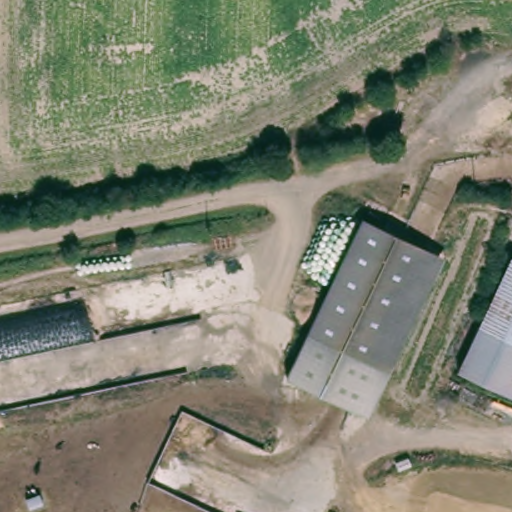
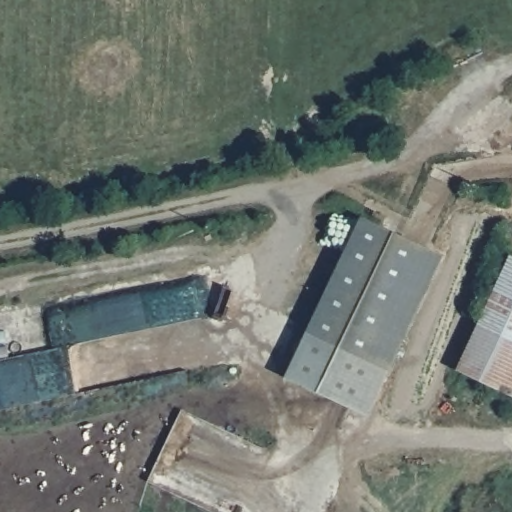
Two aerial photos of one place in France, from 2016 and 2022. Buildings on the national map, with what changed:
unchanged [(367,414),(288,374),(364,215),(445,252),(367,414)]
unchanged [(512,402),(453,374),(507,260),(512,262),(512,402)]

